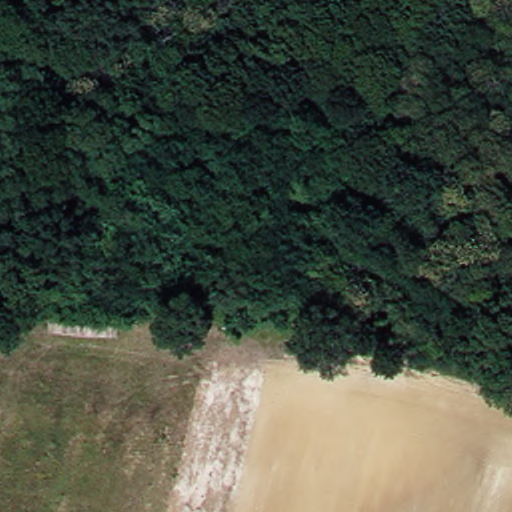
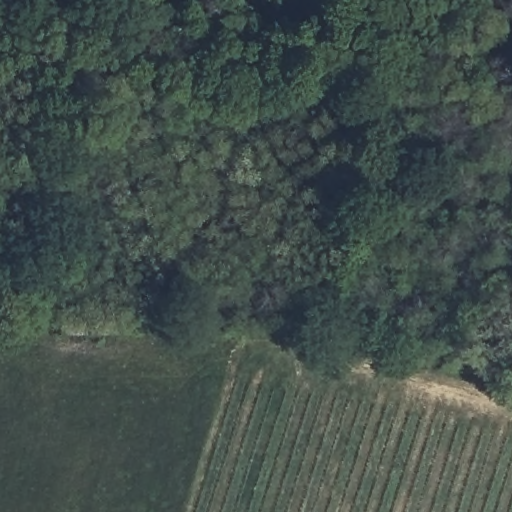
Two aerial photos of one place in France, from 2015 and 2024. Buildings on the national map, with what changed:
[]

